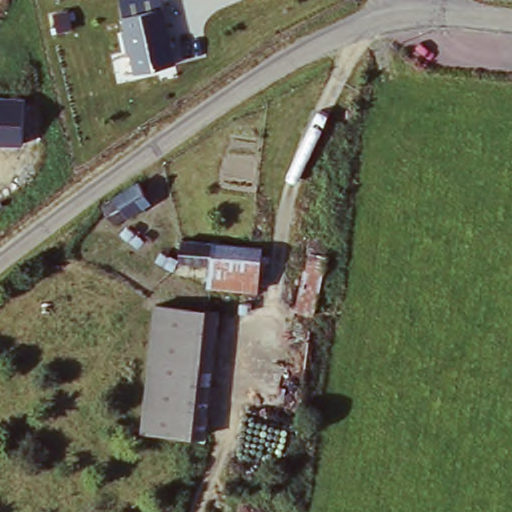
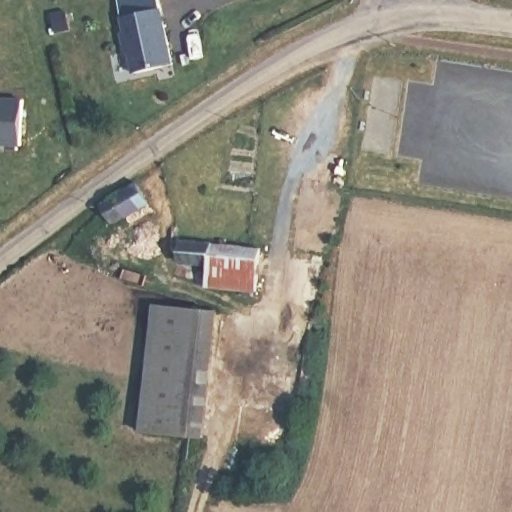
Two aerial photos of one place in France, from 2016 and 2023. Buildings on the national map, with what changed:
unchanged [(136,73),(122,16),(164,6),(176,63),(136,73)]
unchanged [(0,95),(25,96),(24,144),(0,143),(0,95)]
unchanged [(137,180),(149,202),(127,216),(112,225),(101,204),(114,196),(137,180)]
unchanged [(263,248),(260,289),(210,285),(212,265),(181,260),(185,239),(256,247),(263,248)]
unchanged [(147,429),(161,307),(221,311),(207,435),(147,429)]

